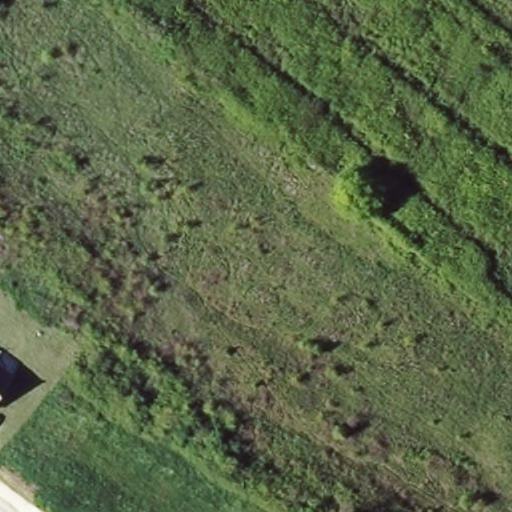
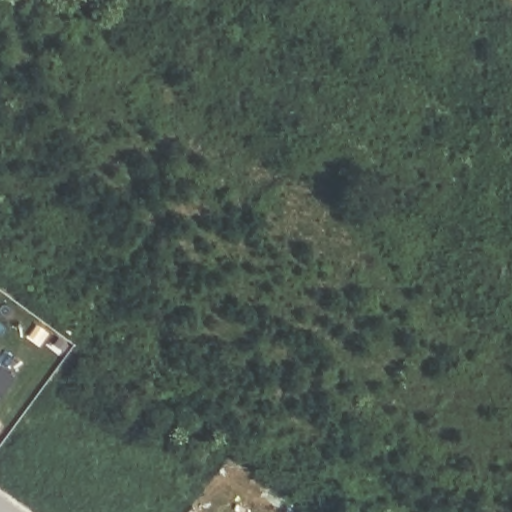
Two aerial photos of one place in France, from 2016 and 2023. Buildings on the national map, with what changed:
unchanged [(0,398),(0,364),(17,376),(0,398)]

